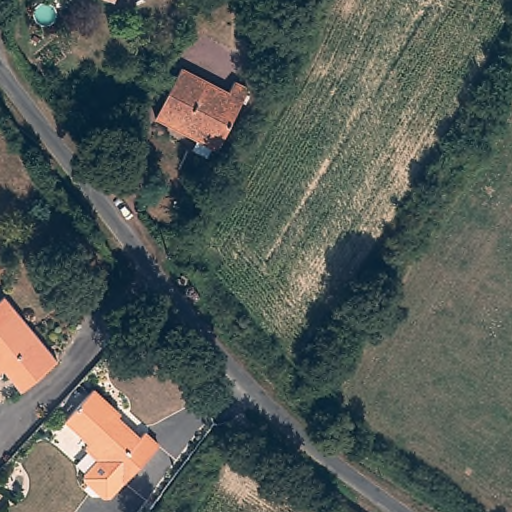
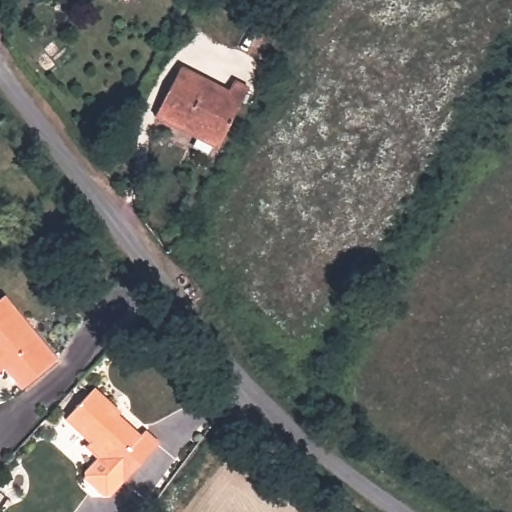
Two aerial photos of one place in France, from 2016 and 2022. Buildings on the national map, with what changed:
unchanged [(149,2),(144,0),(149,0),(149,2)]
unchanged [(247,23),(259,0),(287,14),(275,37),(247,23)]
unchanged [(180,69),(228,93),(234,82),(248,90),(217,150),(155,118),(180,69)]
unchanged [(57,366),(21,396),(3,375),(3,381),(0,384),(0,305),(4,301),(57,366)]
unchanged [(93,390),(120,415),(117,418),(139,438),(144,432),(159,445),(124,483),(111,497),(103,498),(85,481),(85,474),(99,459),(86,447),(90,443),(65,420),(93,390)]

